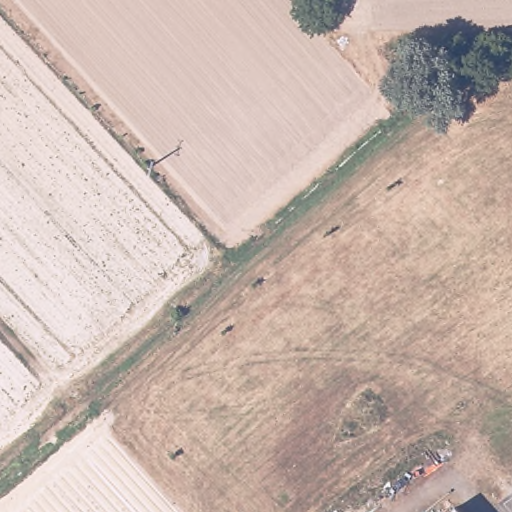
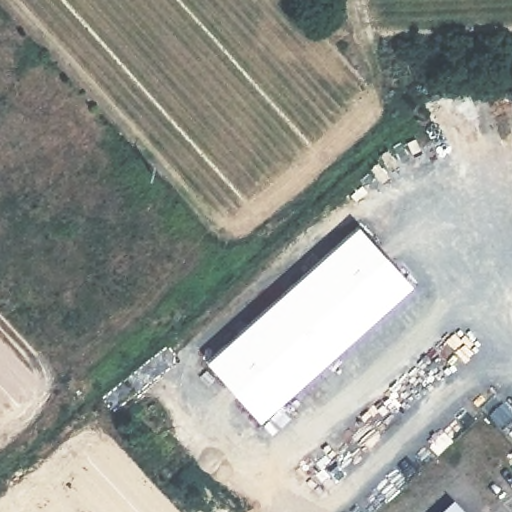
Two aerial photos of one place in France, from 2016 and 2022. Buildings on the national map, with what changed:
new [(356,225),(409,283),(259,420),(206,361),(356,225)]
unchanged [(459,512),(451,512),(455,508),(459,512)]

